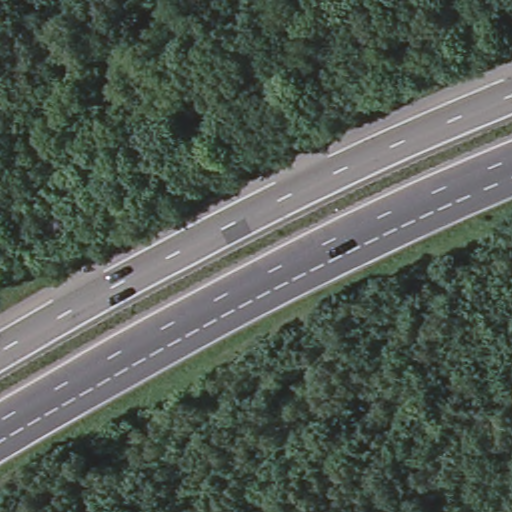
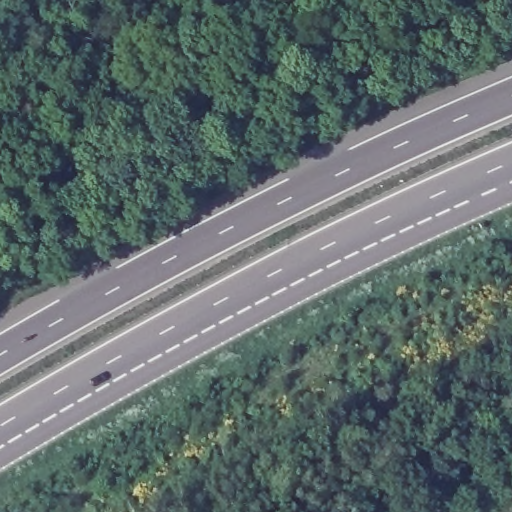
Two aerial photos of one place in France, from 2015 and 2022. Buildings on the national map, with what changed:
[]

